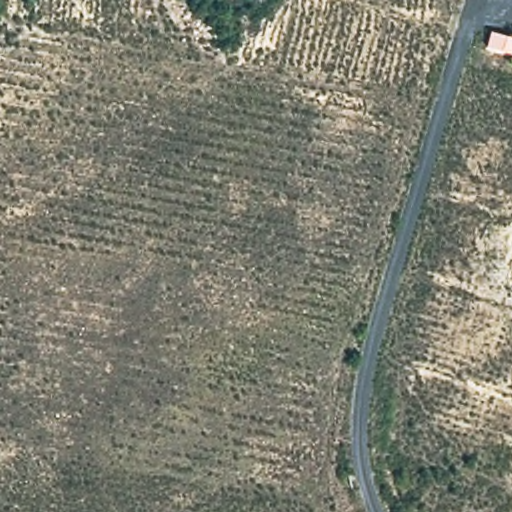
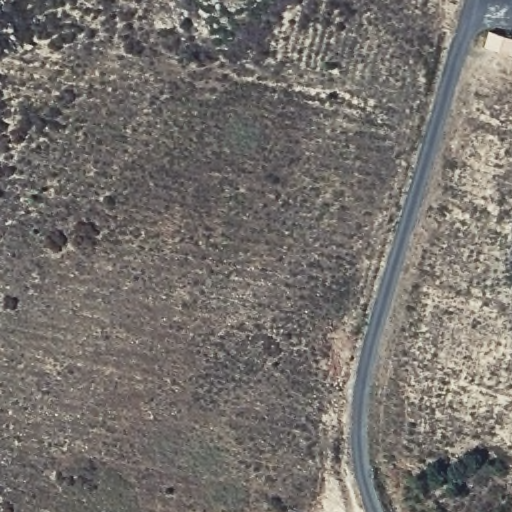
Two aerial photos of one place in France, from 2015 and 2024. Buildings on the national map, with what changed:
unchanged [(512,54),(486,47),(491,29),(512,35),(512,54)]

